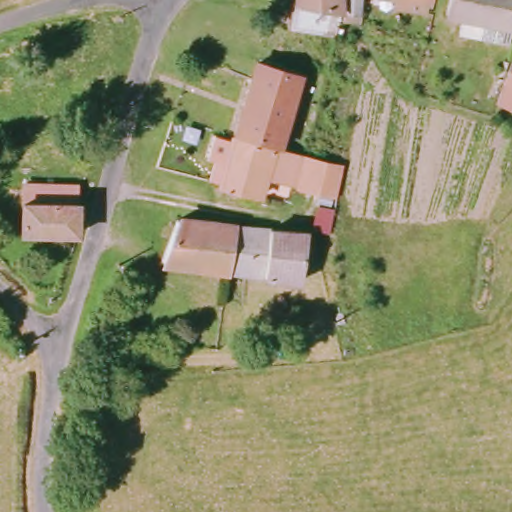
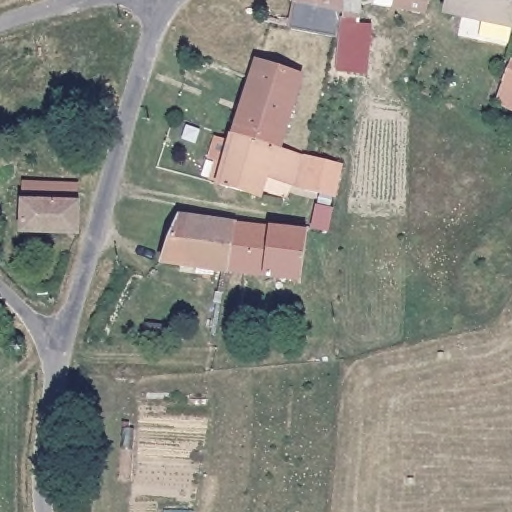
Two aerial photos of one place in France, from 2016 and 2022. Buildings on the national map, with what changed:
unchanged [(343,14),(338,36),(289,28),(291,0),(342,0),(343,14)]
unchanged [(348,20),(347,0),(366,0),(366,21),(348,20)]
unchanged [(428,4),(424,2),(421,15),(392,8),(393,0),(428,0),(428,4)]
unchanged [(476,33),(479,19),(446,11),(448,0),(512,0),(512,9),(508,26),(504,40),(476,33)]
unchanged [(297,73),(276,144),(229,128),(248,56),(297,73)]
unchanged [(506,62),(512,64),(512,111),(491,101),(506,62)]
unchanged [(213,181),(229,128),(276,144),(271,148),(262,175),(256,194),(213,181)]
unchanged [(305,156),(299,186),(262,175),(271,148),(305,156)]
unchanged [(299,186),(305,156),(341,165),(335,195),(299,186)]
unchanged [(22,230),(26,181),(54,182),(54,200),(78,200),(76,231),(22,230)]
unchanged [(161,259),(162,249),(174,217),(233,217),(225,269),(161,259)]
unchanged [(301,274),(225,269),(233,217),(307,232),(301,274)]

